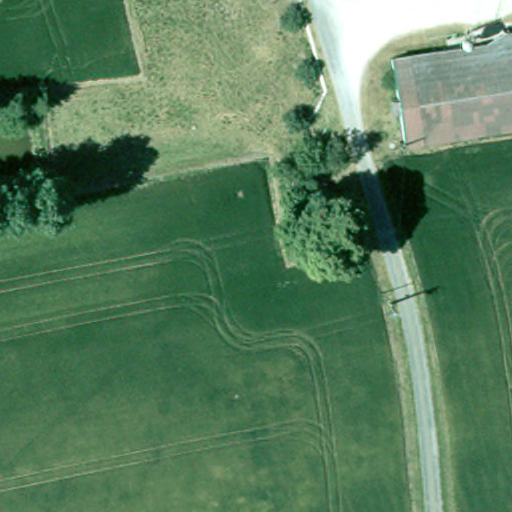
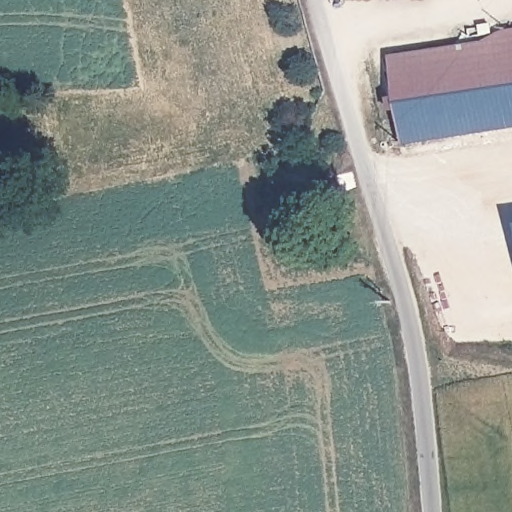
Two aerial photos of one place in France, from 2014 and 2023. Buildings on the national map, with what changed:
unchanged [(407,139),(403,111),(396,112),(394,100),(401,99),(394,59),(495,43),(508,34),(512,33),(512,129),(408,144),(407,139)]

